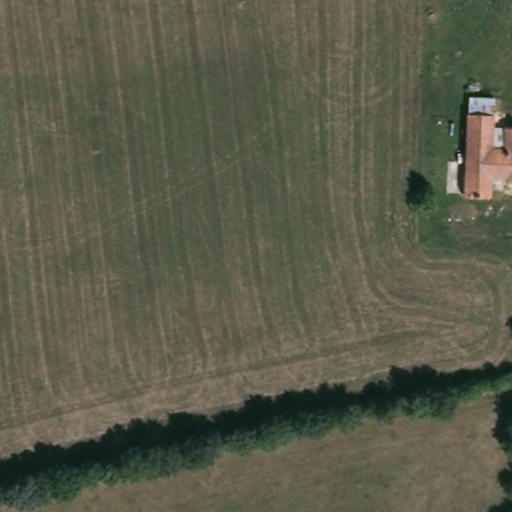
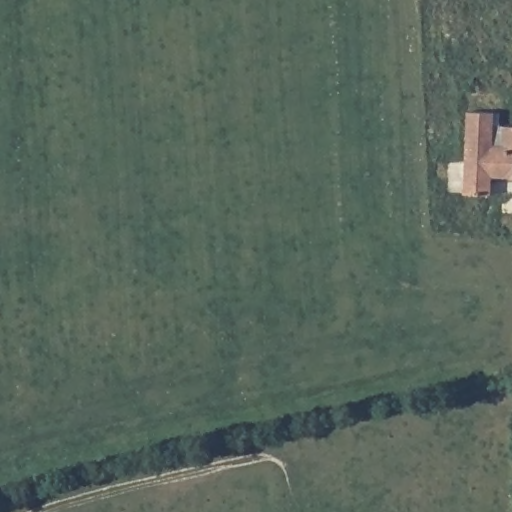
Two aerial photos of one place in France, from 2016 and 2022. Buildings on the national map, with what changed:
unchanged [(491,111),(490,144),(502,144),(502,125),(512,126),(512,179),(502,179),(502,176),(490,176),(490,194),(463,194),(463,111),(491,111)]

